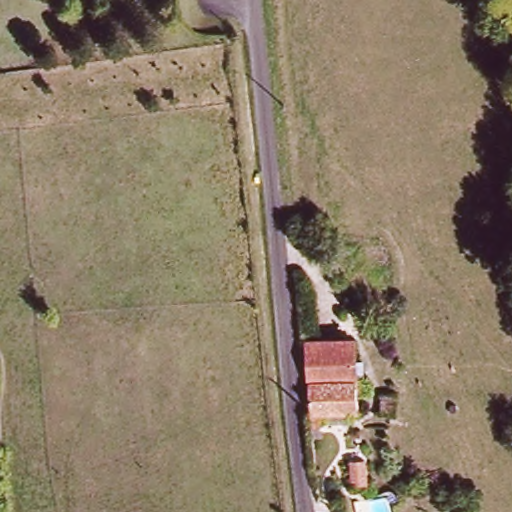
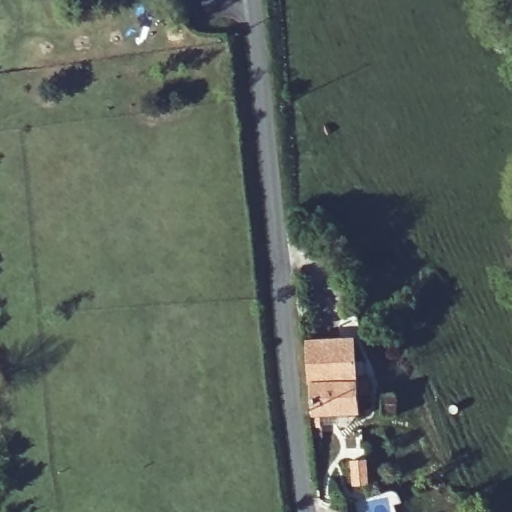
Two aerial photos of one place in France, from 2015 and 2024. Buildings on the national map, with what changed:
unchanged [(310,344),(353,342),(357,384),(370,384),(369,398),(358,397),(359,415),(315,416),(310,344)]
unchanged [(368,483),(352,484),(351,471),(367,468),(368,483)]

